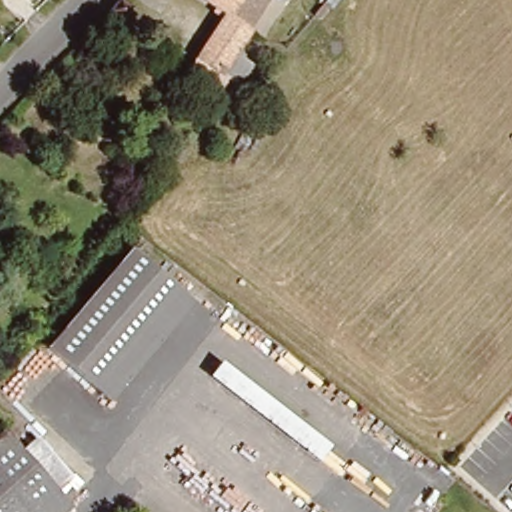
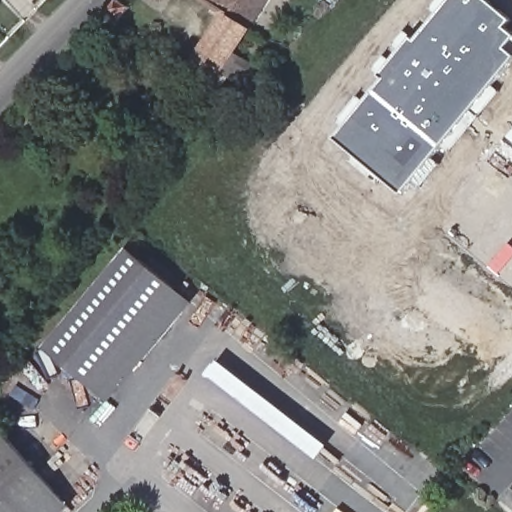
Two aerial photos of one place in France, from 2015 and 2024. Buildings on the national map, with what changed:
unchanged [(111,26),(99,16),(115,0),(124,9),(111,26)]
unchanged [(248,28),(224,13),(220,18),(192,0),(267,0),(248,28)]
new [(384,79),(379,75),(410,37),(415,41),(450,0),(488,0),(512,20),(512,22),(507,28),(512,32),(512,42),(507,48),(512,52),(512,61),(401,194),(334,138),(384,79)]
unchanged [(245,34),(217,72),(195,56),(220,18),(245,34)]
unchanged [(50,354),(123,254),(172,292),(98,392),(50,354)]
unchanged [(186,302),(111,402),(98,392),(172,292),(186,302)]
unchanged [(17,462),(30,452),(63,490),(49,502),(59,512),(0,512),(0,442),(17,462)]

